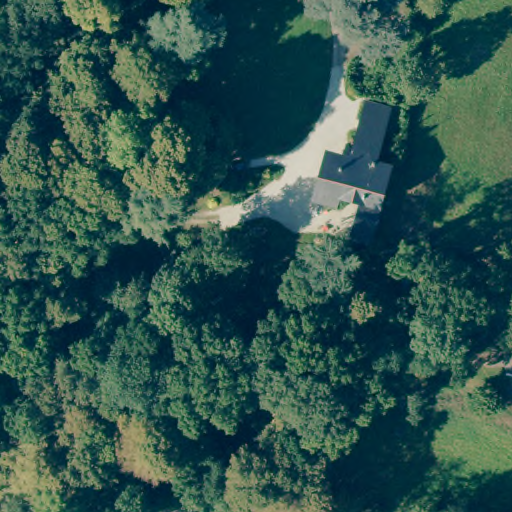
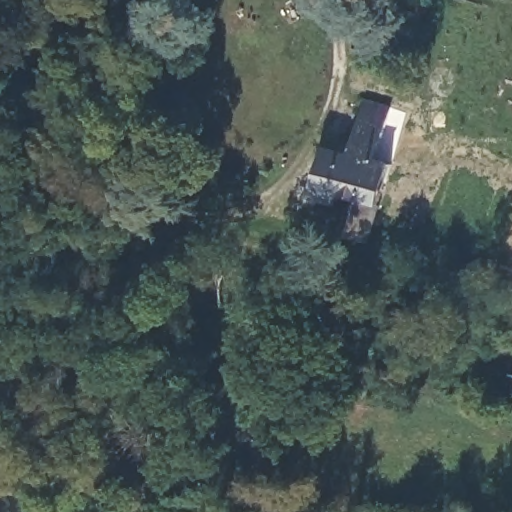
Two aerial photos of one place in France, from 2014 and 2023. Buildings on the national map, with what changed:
unchanged [(45,115),(31,112),(48,48),(63,52),(45,115)]
unchanged [(362,201),(340,194),(337,200),(326,195),(327,190),(321,186),(330,159),(347,164),(368,100),(392,108),(377,158),(395,164),(369,240),(353,234),(362,201)]

